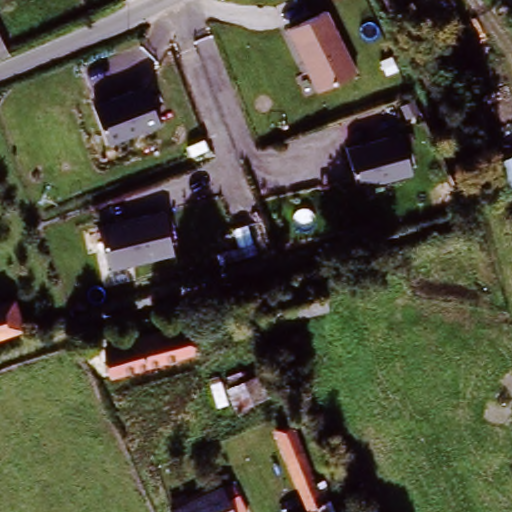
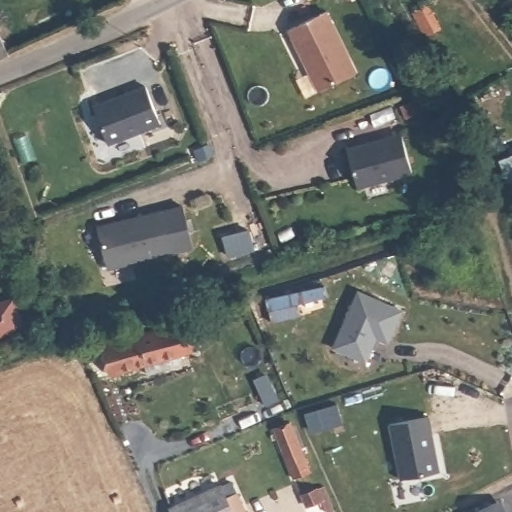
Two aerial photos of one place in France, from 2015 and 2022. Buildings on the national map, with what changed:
unchanged [(358,74),(320,92),(289,32),(328,12),(358,74)]
unchanged [(425,49),(415,24),(433,16),(443,43),(425,49)]
unchanged [(0,63),(0,37),(10,59),(0,63)]
unchanged [(146,84),(160,127),(106,147),(90,105),(146,84)]
unchanged [(402,134),(411,172),(355,186),(345,147),(402,134)]
unchanged [(175,255),(108,273),(98,230),(164,212),(175,255)]
unchanged [(328,317),(270,332),(263,305),(323,289),(328,317)]
new [(336,352),(360,295),(403,313),(390,346),(375,340),(372,346),(375,350),(368,365),(336,352)]
unchanged [(15,301),(26,333),(0,341),(0,305),(15,301)]
unchanged [(193,362),(100,381),(93,350),(187,331),(193,362)]
unchanged [(311,512),(287,463),(266,425),(281,417),(300,457),(327,507),(318,512),(311,512)]
new [(428,417),(441,472),(401,482),(388,426),(428,417)]
unchanged [(221,488),(232,512),(175,512),(173,509),(221,488)]
new [(496,512),(482,512),(493,506),(496,512)]

